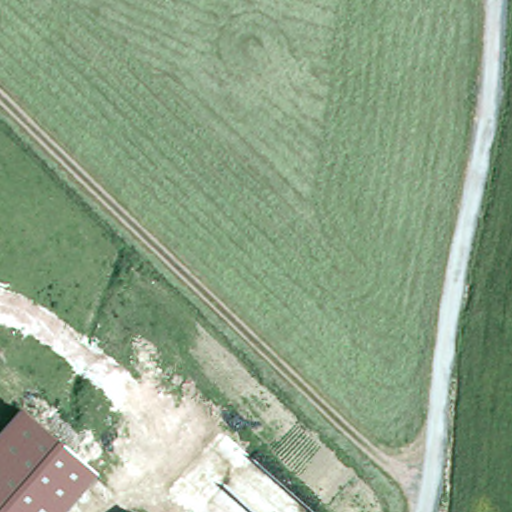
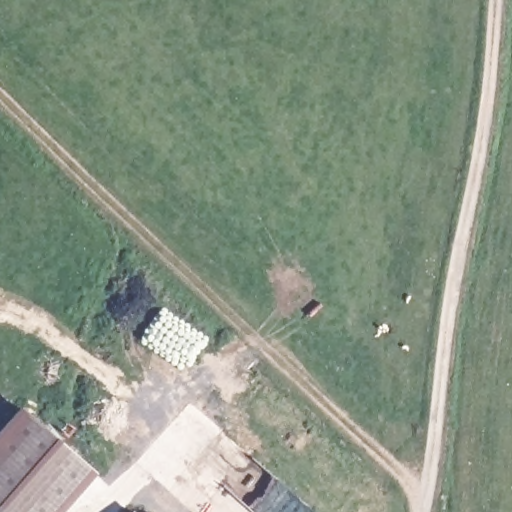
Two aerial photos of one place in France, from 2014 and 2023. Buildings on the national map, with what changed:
unchanged [(64,512),(0,512),(0,429),(21,404),(98,472),(64,512)]

